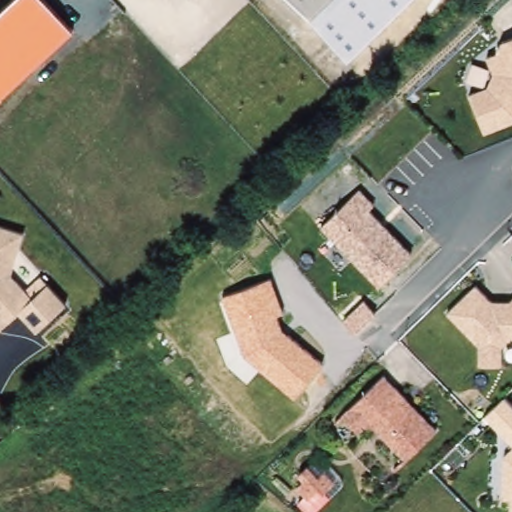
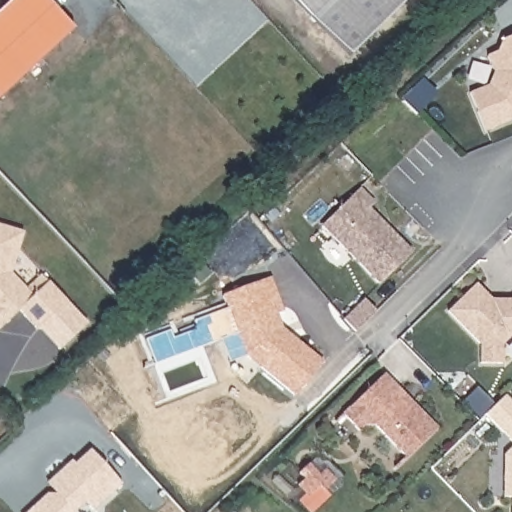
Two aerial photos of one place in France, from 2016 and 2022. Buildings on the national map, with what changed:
unchanged [(0,97),(0,13),(14,0),(49,0),(77,29),(0,97)]
unchanged [(294,0),(330,0),(311,18),(294,0)]
unchanged [(311,18),(330,0),(407,0),(351,56),(311,18)]
unchanged [(473,92),(490,86),(496,72),(490,56),(499,53),(501,41),(512,37),(512,122),(487,131),(473,92)]
unchanged [(377,201),(372,209),(415,254),(381,286),(324,223),(361,188),(377,201)]
unchanged [(28,232),(14,273),(28,288),(45,276),(70,302),(40,332),(24,315),(15,316),(1,331),(0,331),(0,225),(28,232)]
unchanged [(244,355),(223,297),(271,279),(283,312),(276,315),(282,330),(322,362),(294,396),(244,355)]
unchanged [(503,345),(504,365),(481,364),(480,342),(449,311),(479,285),(496,300),(512,299),(512,336),(503,345)]
unchanged [(441,428),(409,457),(371,423),(361,432),(343,417),(386,374),(441,428)]
unchanged [(512,440),(489,415),(508,396),(512,401),(512,440)]
unchanged [(1,407),(0,408),(0,406),(1,407)]
new [(44,495),(54,495),(55,485),(49,479),(69,461),(72,464),(87,450),(118,485),(90,511),(82,502),(71,512),(25,512),(44,495)]
unchanged [(506,456),(512,450),(512,498),(507,498),(506,456)]
unchanged [(296,503),(304,495),(295,485),(300,480),(296,474),(320,457),(343,484),(312,512),(305,512),(296,503)]

